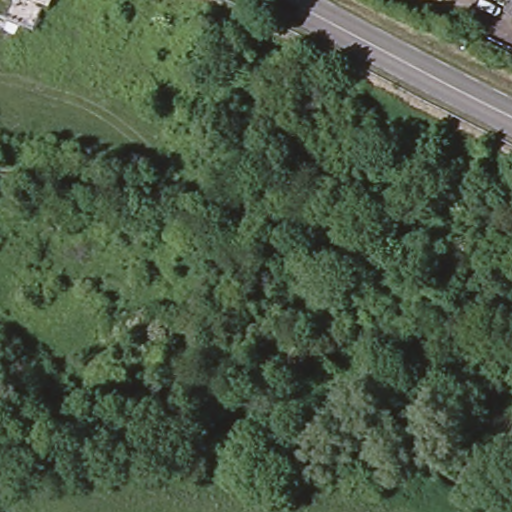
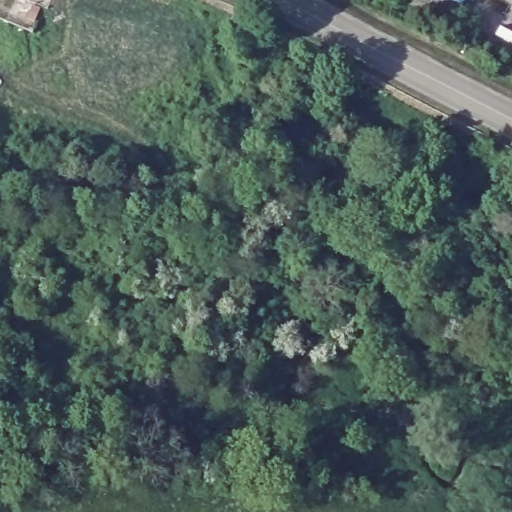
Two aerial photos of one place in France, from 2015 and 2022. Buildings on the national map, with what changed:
unchanged [(506,0),(512,0),(512,4),(506,0)]

